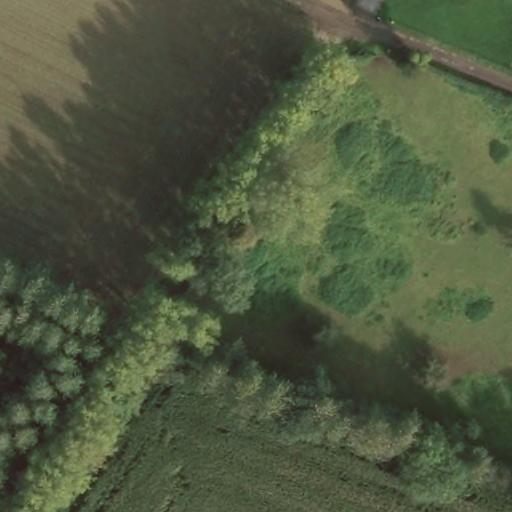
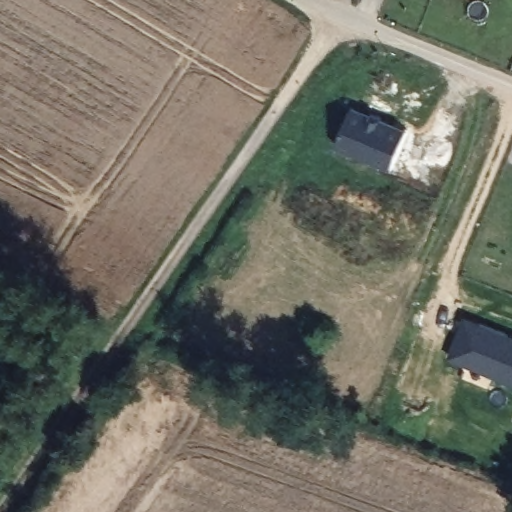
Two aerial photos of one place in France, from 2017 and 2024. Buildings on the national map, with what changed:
new [(408,127),(392,168),(337,145),(352,107),(408,127)]
new [(512,336),(512,383),(449,358),(465,317),(512,336)]

